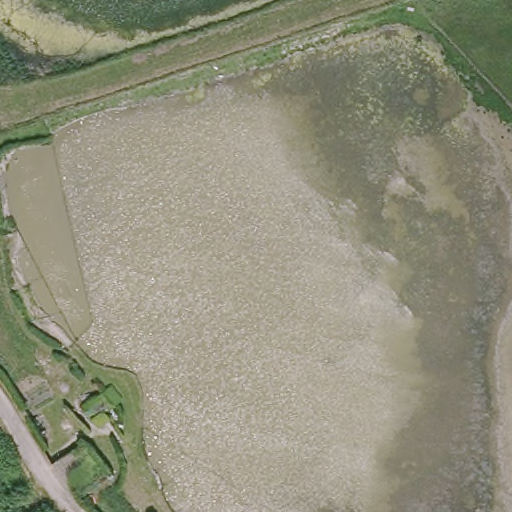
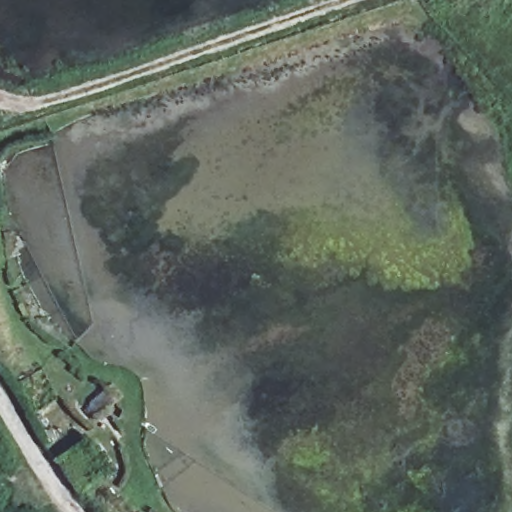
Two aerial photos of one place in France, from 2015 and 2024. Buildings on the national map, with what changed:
unchanged [(79,437),(100,462),(72,483),(54,461),(79,437)]

